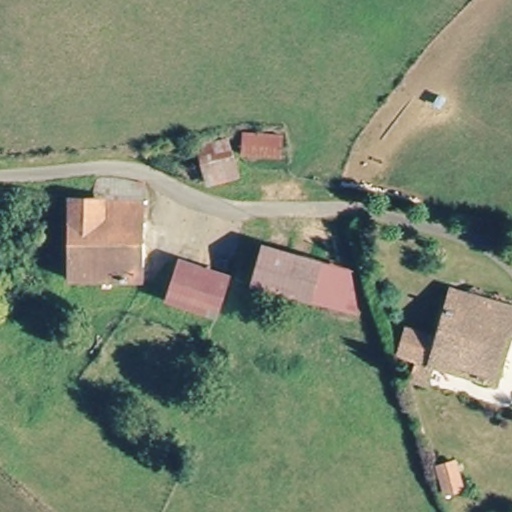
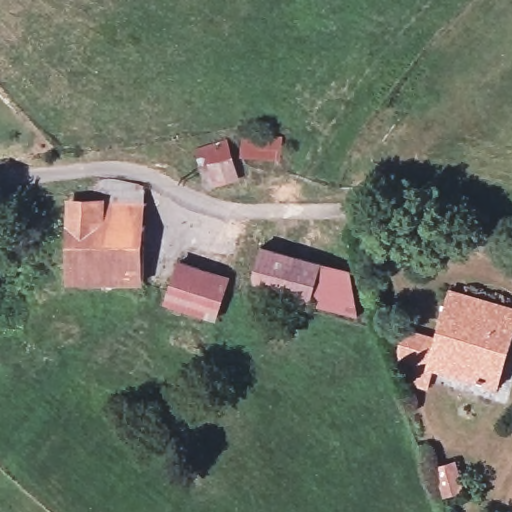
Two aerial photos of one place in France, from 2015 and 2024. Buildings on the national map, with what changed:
unchanged [(250,140),(286,146),(285,155),(282,164),(247,158),(248,149),(250,140)]
unchanged [(235,147),(241,184),(208,190),(202,157),(235,147)]
unchanged [(141,235),(137,291),(136,291),(67,287),(68,270),(72,206),(92,207),(94,192),(149,194),(148,199),(147,211),(145,235),(141,235)]
unchanged [(252,291),(264,247),(317,260),(322,261),(311,306),(301,303),(252,291)]
unchanged [(322,261),(357,268),(362,318),(311,306),(322,261)]
unchanged [(230,273),(219,317),(172,306),(182,262),(230,273)]
unchanged [(493,383),(437,366),(431,386),(412,380),(418,361),(402,356),(400,347),(408,324),(437,335),(455,287),(512,305),(512,350),(501,385),(493,383)]
unchanged [(447,473),(425,478),(419,446),(441,442),(447,473)]

